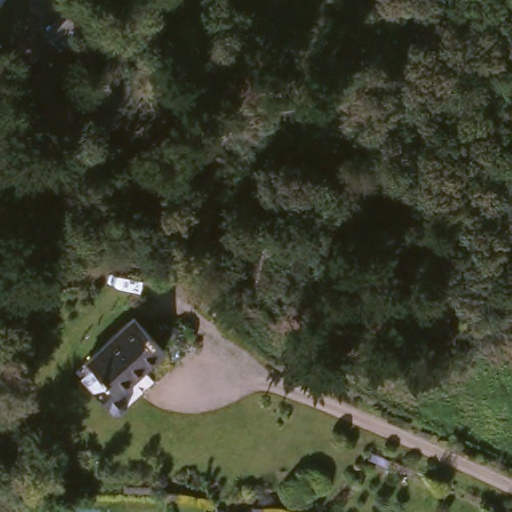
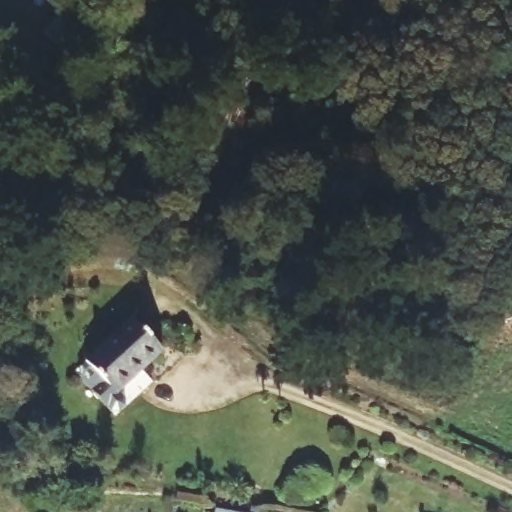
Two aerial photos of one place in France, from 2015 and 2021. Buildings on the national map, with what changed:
unchanged [(48,29),(64,10),(77,20),(61,40),(48,29)]
unchanged [(141,410),(128,424),(79,377),(141,319),(176,356),(156,374),(131,398),(141,410)]
unchanged [(229,512),(215,512),(215,510),(229,512)]

